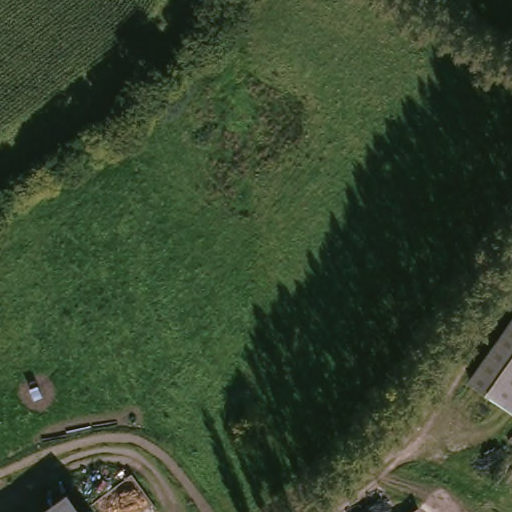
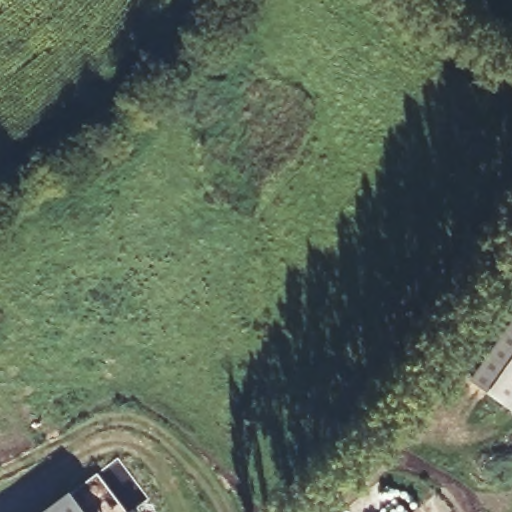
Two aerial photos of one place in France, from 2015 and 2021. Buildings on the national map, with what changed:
unchanged [(512,413),(467,382),(512,315),(512,413)]
unchanged [(67,494),(81,512),(43,512),(67,494)]

